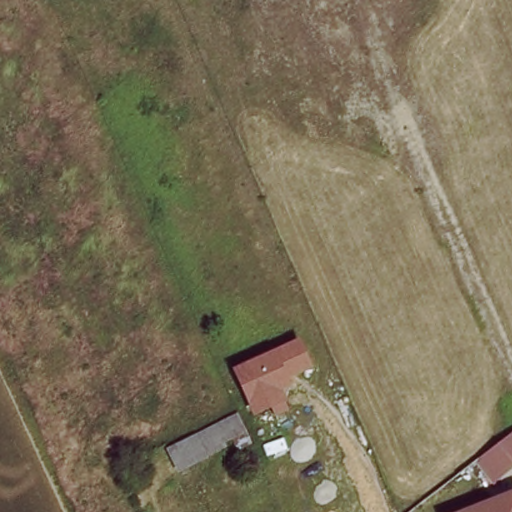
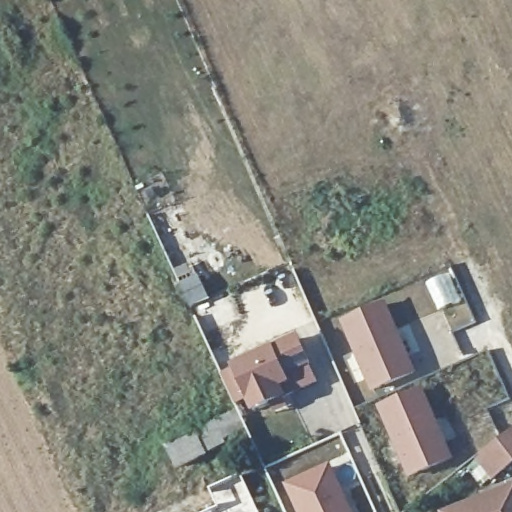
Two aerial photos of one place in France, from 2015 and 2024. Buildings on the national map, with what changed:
new [(339,322),(385,303),(418,374),(371,393),(339,322)]
unchanged [(299,337),(314,367),(288,378),(291,385),(281,389),(290,409),(276,415),(272,407),(253,415),(233,367),(299,337)]
new [(291,385),(288,378),(311,368),(319,385),(286,400),(281,389),(291,385)]
new [(378,408),(423,388),(456,460),(410,480),(378,408)]
unchanged [(247,427),(203,447),(205,452),(177,465),(168,444),(239,410),(247,427)]
unchanged [(472,454),(512,427),(512,462),(487,480),(472,454)]
new [(352,512),(295,512),(282,484),(329,461),(352,512)]
new [(207,488),(241,474),(258,512),(208,512),(215,507),(207,488)]
unchanged [(512,512),(468,512),(512,494),(512,512)]

